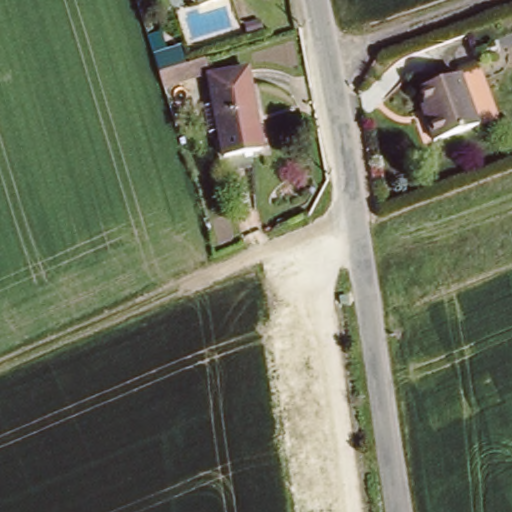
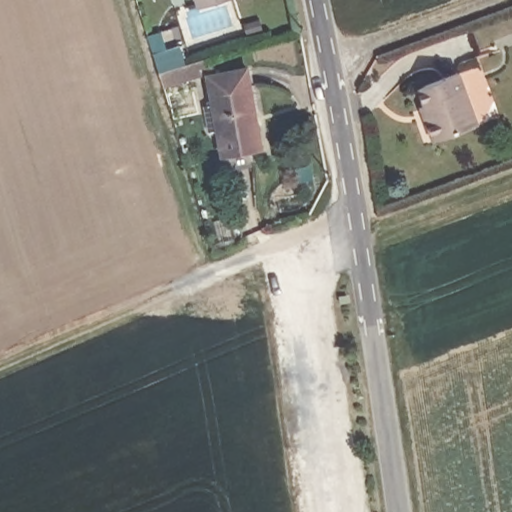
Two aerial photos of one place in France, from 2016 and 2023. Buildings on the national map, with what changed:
unchanged [(182,0),(217,0),(183,6),(182,0)]
unchanged [(240,22),(253,20),(255,29),(242,32),(240,22)]
unchanged [(157,72),(186,63),(190,76),(161,85),(157,72)]
unchanged [(244,67),(258,148),(220,155),(216,128),(207,130),(202,104),(212,102),(207,74),(244,67)]
unchanged [(421,116),(427,114),(419,86),(458,76),(472,128),(427,140),(421,116)]

